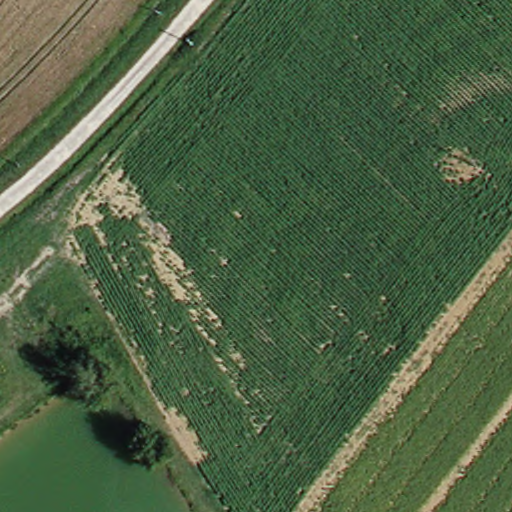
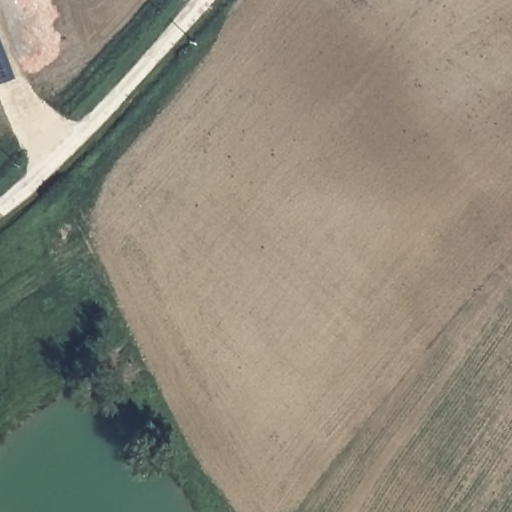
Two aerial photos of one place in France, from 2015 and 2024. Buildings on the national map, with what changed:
new [(0,87),(0,26),(19,79),(0,87)]

